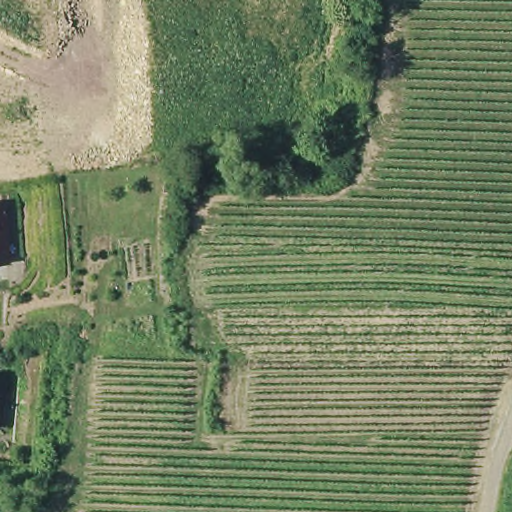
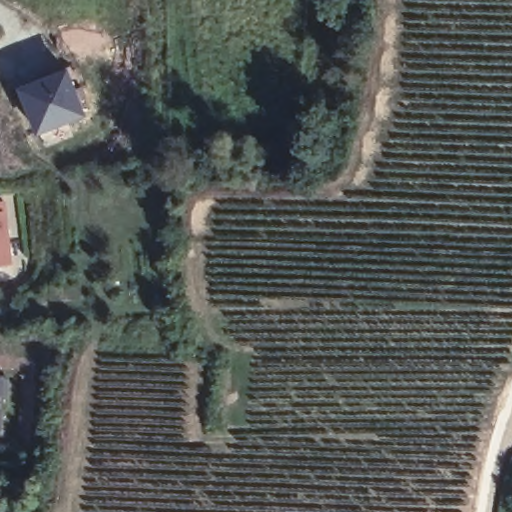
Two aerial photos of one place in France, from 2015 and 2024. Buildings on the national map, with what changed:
unchanged [(412,15),(413,4),(425,5),(424,16),(412,15)]
new [(84,115),(34,135),(15,86),(65,68),(84,115)]
unchanged [(2,206),(9,266),(0,267),(0,206),(2,206)]

